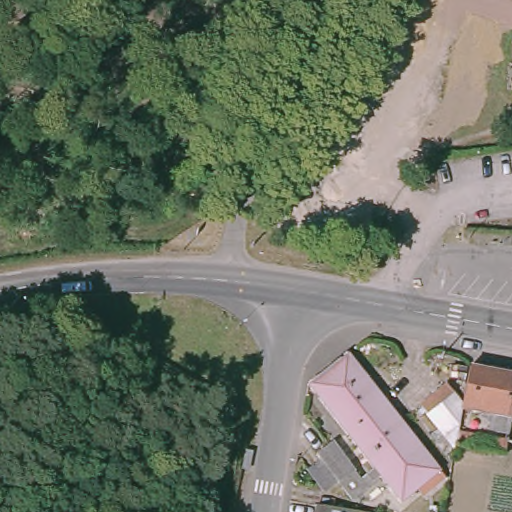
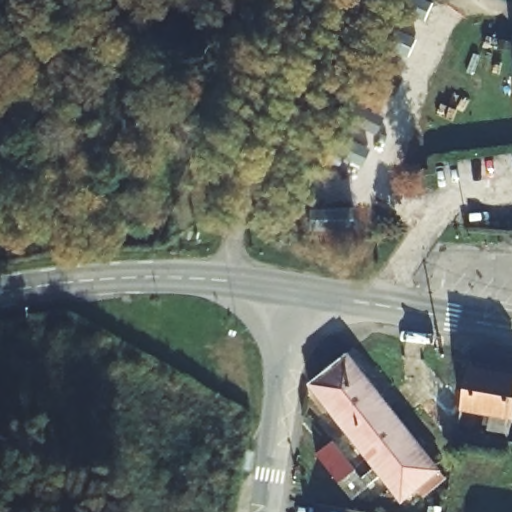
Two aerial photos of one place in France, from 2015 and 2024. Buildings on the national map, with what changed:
unchanged [(0,0),(6,0),(1,2),(0,0)]
unchanged [(346,356),(443,480),(429,490),(423,483),(396,504),(306,387),(346,356)]
unchanged [(512,367),(512,408),(509,426),(490,423),(491,406),(462,400),(463,396),(469,359),(512,367)]
unchanged [(507,446),(456,436),(422,398),(447,376),(463,396),(462,400),(458,425),(509,435),(507,446)]
unchanged [(335,448),(370,491),(353,504),(319,461),(335,448)]

